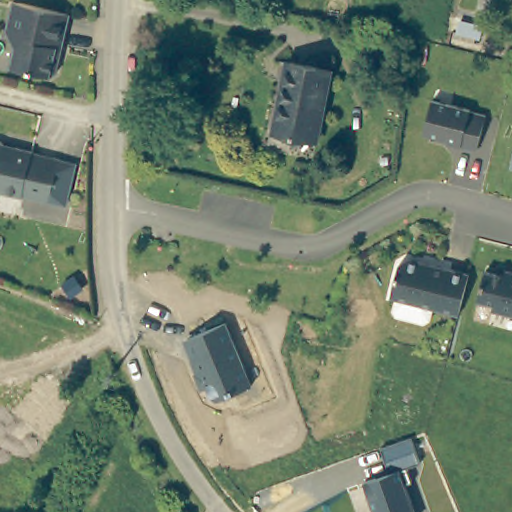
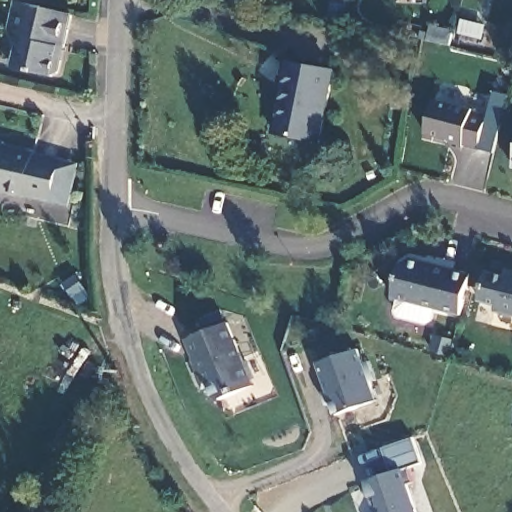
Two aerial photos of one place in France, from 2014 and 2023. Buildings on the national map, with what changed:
unchanged [(58,46),(57,51),(57,56),(60,60),(58,72),(53,75),(13,68),(17,47),(7,31),(14,1),(70,13),(63,47),(58,46)]
unchanged [(318,141),(275,132),(288,62),(332,71),(318,141)]
unchanged [(436,100),(474,110),(473,112),(489,116),(481,150),(465,146),(465,148),(452,145),(453,143),(428,136),(436,100)]
unchanged [(60,186),(57,203),(41,199),(40,200),(14,193),(13,195),(0,192),(0,145),(6,146),(7,145),(8,145),(24,149),(24,150),(51,157),(67,161),(60,186)]
unchanged [(460,311),(431,303),(428,315),(421,319),(395,312),(392,306),(395,294),(392,293),(401,258),(409,253),(470,270),(460,311)]
unchanged [(485,271),(504,275),(505,270),(512,272),(512,316),(493,311),(495,305),(478,301),(485,271)]
unchanged [(216,402),(187,339),(229,321),(255,384),(216,402)]
new [(377,401),(336,416),(318,363),(358,348),(377,401)]
unchanged [(416,437),(426,462),(414,467),(419,482),(412,485),(421,512),(382,512),(371,482),(382,478),(384,482),(397,477),(387,448),(412,438),(416,437)]

